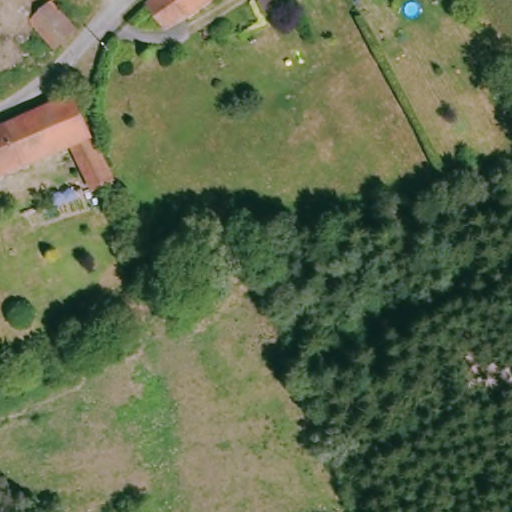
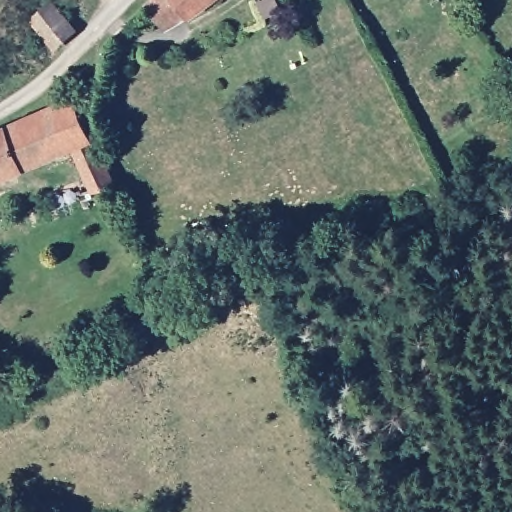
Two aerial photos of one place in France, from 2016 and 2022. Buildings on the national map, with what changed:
unchanged [(191,16),(188,13),(166,27),(149,5),(148,2),(151,0),(214,0),(191,16)]
unchanged [(76,28),(54,46),(34,19),(56,3),(76,28)]
unchanged [(116,186),(115,192),(111,195),(108,195),(101,192),(98,187),(93,189),(73,144),(0,176),(0,126),(73,94),(94,137),(116,186)]

